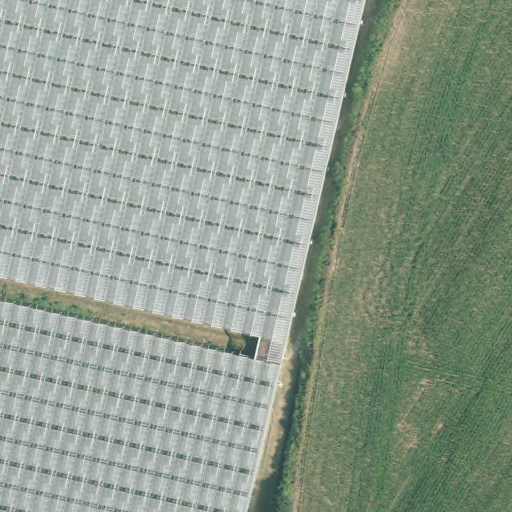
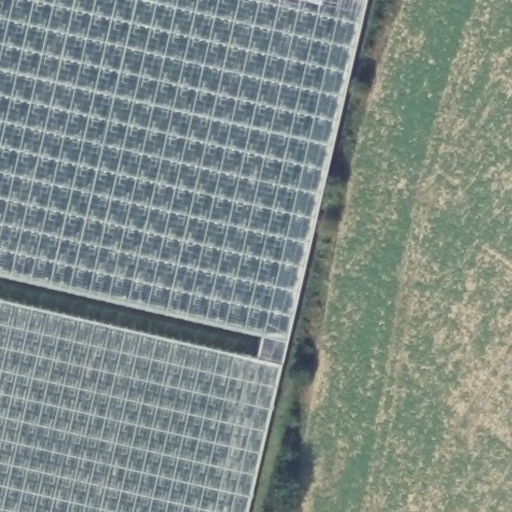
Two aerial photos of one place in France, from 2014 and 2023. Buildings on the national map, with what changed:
unchanged [(267,333),(0,270),(0,0),(345,0),(267,333)]
unchanged [(240,512),(0,512),(0,280),(280,344),(240,512)]

